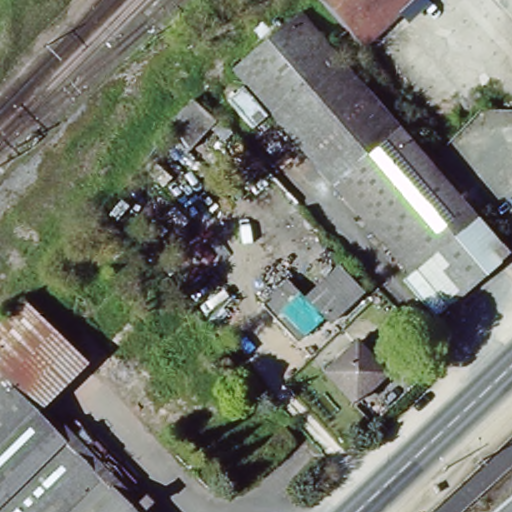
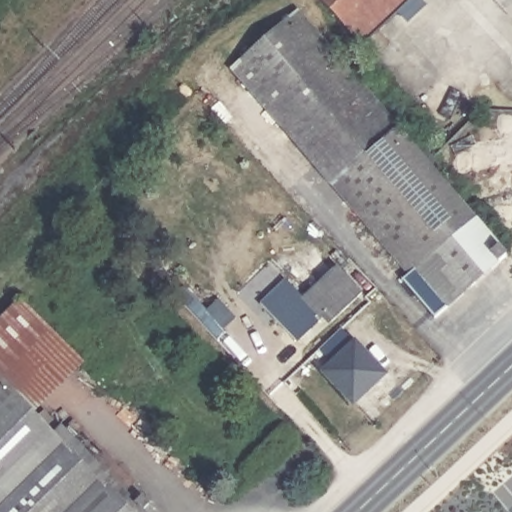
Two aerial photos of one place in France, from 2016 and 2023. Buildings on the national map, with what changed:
unchanged [(317,0),(409,0),(358,46),(317,0)]
unchanged [(417,269),(338,183),(233,69),(275,32),(297,12),(402,127),(478,211),(512,248),(512,251),(443,313),(409,277),(417,269)]
unchanged [(195,102),(217,122),(198,142),(191,150),(168,129),(177,120),(195,102)]
unchanged [(280,323),(260,303),(286,277),(305,297),(321,281),(338,264),(365,290),(347,308),(334,320),(325,312),(322,314),(296,339),(280,323)]
unchanged [(76,486),(70,491),(62,485),(33,512),(0,512),(0,327),(26,302),(88,367),(38,415),(84,464),(69,478),(76,486)]
unchanged [(390,376),(358,405),(325,371),(357,341),(390,376)]
unchanged [(85,463),(92,470),(100,463),(101,463),(126,490),(147,512),(33,512),(62,485),(70,491),(76,486),(69,478),(84,464),(85,463)]

